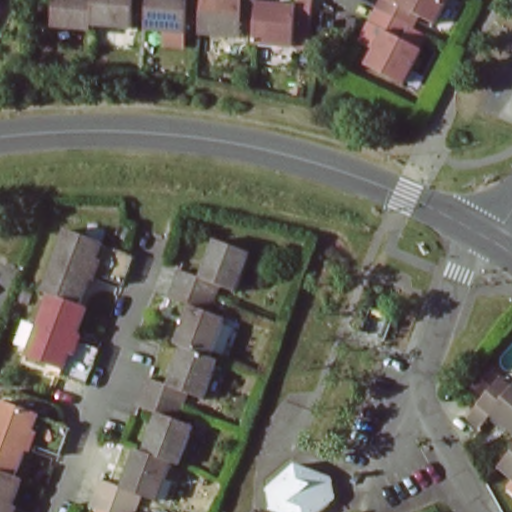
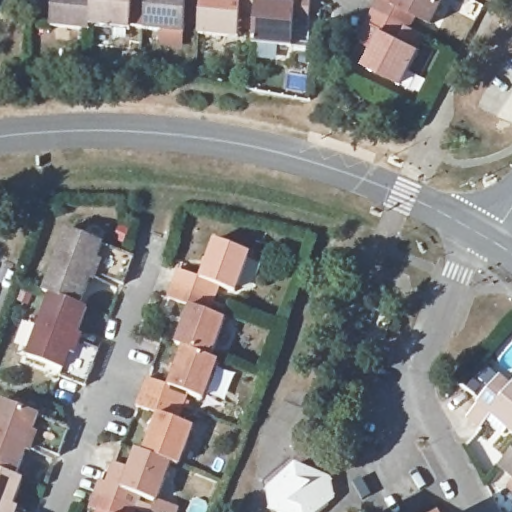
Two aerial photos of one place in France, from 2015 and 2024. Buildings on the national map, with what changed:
unchanged [(88,21),(88,26),(51,23),(53,0),(90,0),(88,21)]
unchanged [(90,0),(146,0),(146,3),(145,8),(130,7),(128,24),(88,21),(90,0)]
unchanged [(184,11),(183,29),(144,26),(145,8),(146,3),(146,0),(200,0),(199,13),(184,11)]
unchanged [(254,0),(253,17),(239,16),(238,33),(197,30),(199,13),(200,0),(254,0)]
unchanged [(274,0),(294,1),(294,0),(311,0),(309,26),(293,25),(291,43),(251,40),(253,17),(254,0),(274,0)]
unchanged [(378,9),(382,0),(394,0),(400,2),(401,0),(448,0),(437,22),(421,14),(414,28),(390,15),(378,9)]
unchanged [(390,15),(414,28),(408,41),(423,48),(407,83),(369,64),(386,30),(372,22),(378,9),(390,15)]
unchanged [(48,291),(40,288),(63,225),(99,239),(99,242),(127,251),(130,252),(120,280),(89,268),(76,302),(48,291)]
unchanged [(182,349),(180,348),(172,345),(187,307),(164,298),(169,284),(174,272),(197,280),(211,242),(245,254),(230,292),(213,286),(209,299),(203,313),(220,319),(205,358),(182,349)]
unchanged [(76,302),(82,304),(70,337),(94,347),(87,366),(81,382),(56,372),(58,367),(24,353),(48,291),(76,302)]
unchanged [(141,453),(156,414),(133,405),(138,392),(144,378),(165,386),(180,348),(182,349),(205,358),(214,361),(199,400),(182,393),(177,406),(172,420),(188,426),(173,465),(167,463),(141,453)]
unchanged [(492,417),(480,432),(466,422),(480,406),(495,390),(496,391),(507,379),(512,382),(512,434),(492,417)]
unchanged [(0,404),(65,429),(54,457),(24,445),(10,479),(0,476),(0,404)]
unchanged [(152,501),(136,494),(130,510),(129,512),(98,512),(86,507),(90,495),(96,480),(118,488),(133,450),(141,453),(167,463),(152,501)]
unchanged [(500,469),(512,455),(512,479),(500,469)]
unchanged [(321,474),(327,506),(320,512),(276,512),(270,486),(296,465),(321,474)]
unchanged [(18,482),(6,512),(0,512),(0,476),(10,479),(18,482)]

